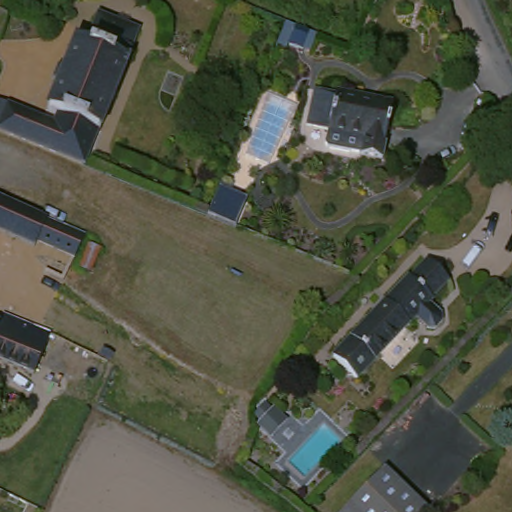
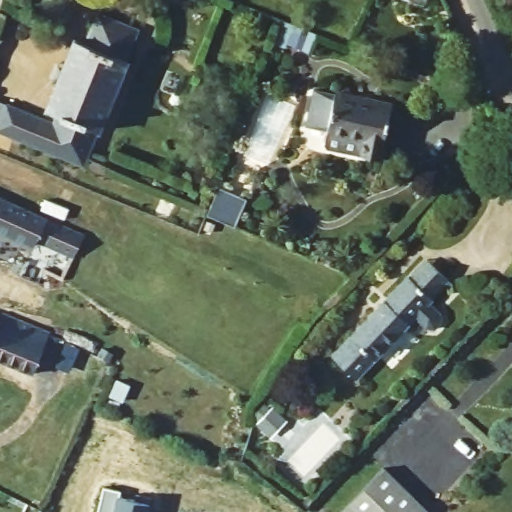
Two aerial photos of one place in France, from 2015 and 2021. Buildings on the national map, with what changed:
unchanged [(122,65),(93,134),(90,134),(77,164),(75,168),(29,149),(0,138),(0,107),(48,126),(51,118),(38,112),(68,43),(79,47),(84,35),(91,18),(132,35),(119,64),(122,65)]
unchanged [(321,154),(324,137),(302,133),(309,96),(331,100),(331,98),(387,107),(380,148),(358,144),(355,161),(321,154)]
unchanged [(218,185),(246,197),(235,223),(207,211),(218,185)]
unchanged [(18,207),(24,193),(47,204),(40,218),(18,207)]
unchanged [(28,249),(0,237),(0,203),(77,237),(67,259),(31,243),(28,249)]
unchanged [(406,279),(422,262),(442,281),(426,298),(429,301),(356,379),(333,355),(404,278),(406,279)]
unchanged [(26,373),(0,363),(0,317),(42,334),(26,373)]
unchanged [(420,512),(341,512),(381,472),(420,512)]
new [(104,486),(121,490),(119,496),(134,499),(136,494),(152,498),(148,512),(97,512),(104,486)]

